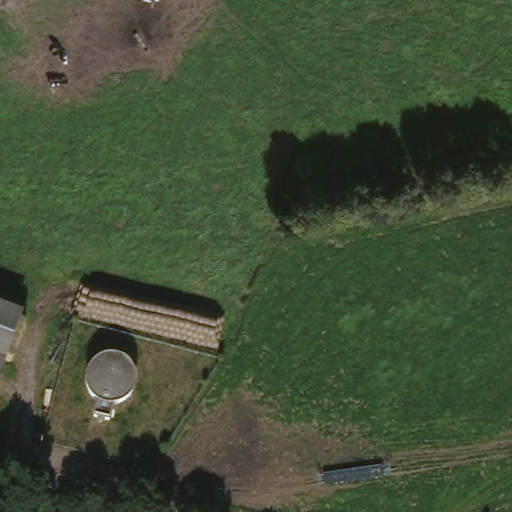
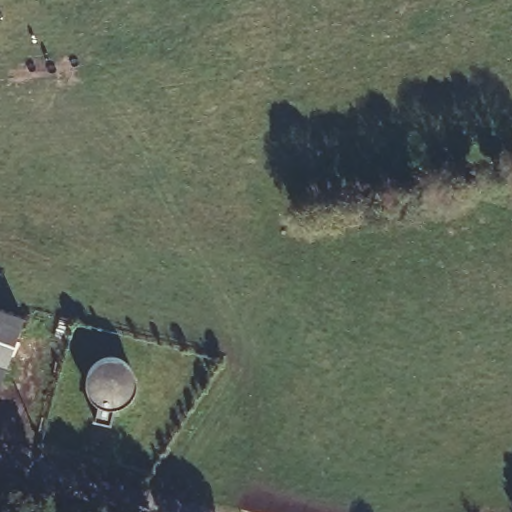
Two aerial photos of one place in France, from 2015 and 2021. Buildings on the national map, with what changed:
unchanged [(0,380),(0,301),(24,310),(0,380)]

